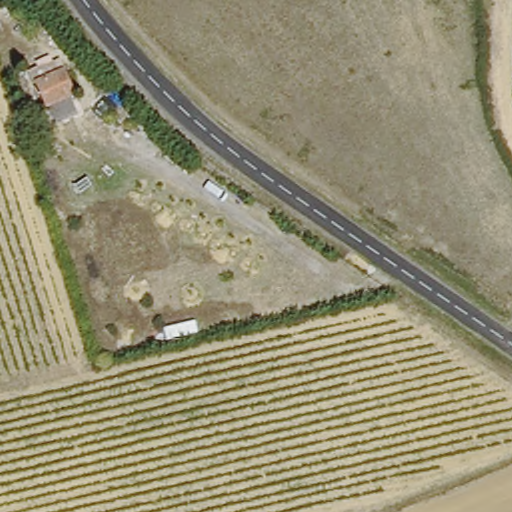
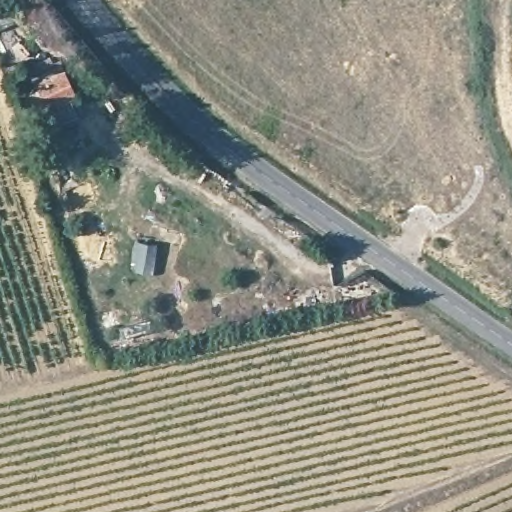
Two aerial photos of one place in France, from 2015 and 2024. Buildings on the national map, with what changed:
unchanged [(77,100),(45,114),(33,93),(67,78),(77,100)]

